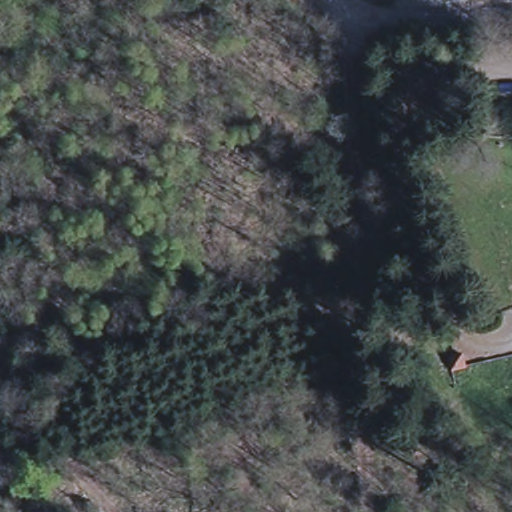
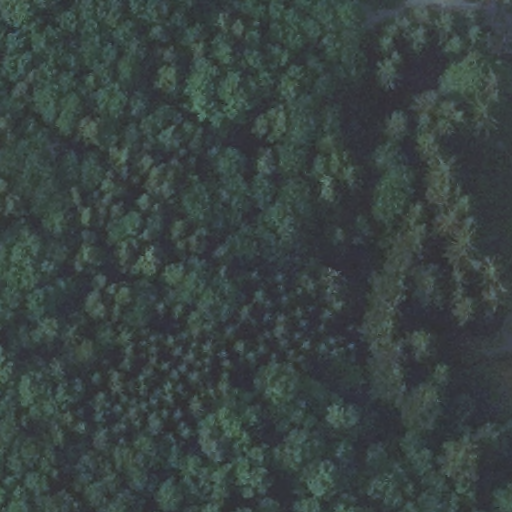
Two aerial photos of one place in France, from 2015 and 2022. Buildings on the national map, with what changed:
unchanged [(484,108),(501,105),(512,103),(512,125),(505,126),(505,123),(487,126),(484,108)]

